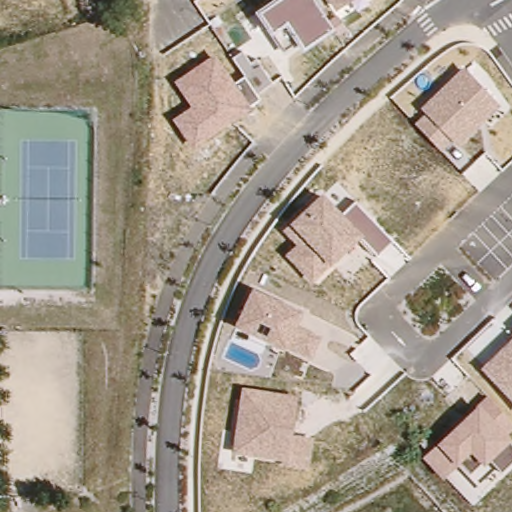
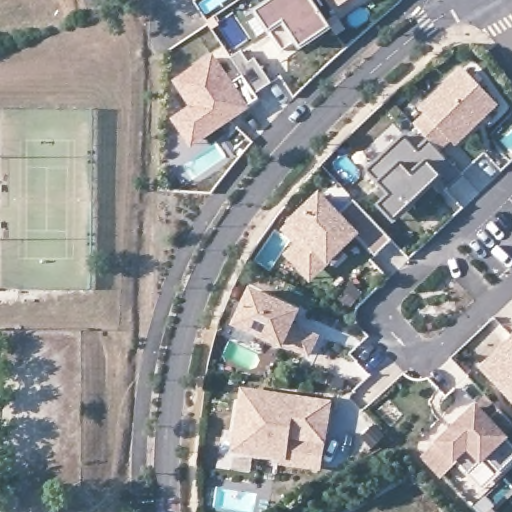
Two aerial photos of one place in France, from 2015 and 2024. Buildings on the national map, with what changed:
unchanged [(256,11),(272,0),(315,0),(334,28),(302,50),(297,43),(284,52),(271,34),(256,11)]
unchanged [(350,0),(335,10),(328,0),(350,0)]
unchanged [(171,119),(191,105),(173,81),(214,54),(234,82),(244,76),(231,58),(241,51),(250,65),(257,61),(271,83),(256,93),(259,99),(248,105),(250,109),(192,147),(171,119)]
unchanged [(414,123),(426,112),(421,107),(464,67),(500,105),(457,145),(452,140),(440,151),(414,123)]
new [(465,176),(452,189),(444,179),(397,224),(380,205),(390,196),(367,169),(405,134),(419,149),(429,139),(440,151),(465,176)]
unchanged [(285,254),(296,245),(280,230),(289,222),(321,192),(343,215),(355,201),(393,240),(377,256),(357,239),(329,265),(311,282),(285,254)]
unchanged [(284,345),(282,348),(233,326),(252,287),(302,310),(296,325),(322,335),(311,358),(284,345)]
unchanged [(512,338),(512,400),(481,367),(512,338)]
unchanged [(242,386),(298,395),(292,435),(313,439),(309,471),(280,465),(281,460),(231,452),(242,386)]
new [(323,472),(309,471),(313,439),(292,435),(298,395),(333,402),(323,472)]
unchanged [(435,443),(478,403),(487,395),(512,420),(512,430),(508,434),(512,437),(512,438),(509,442),(512,446),(512,463),(502,473),(488,458),(482,464),(469,476),(457,465),(442,479),(422,457),(435,443)]

